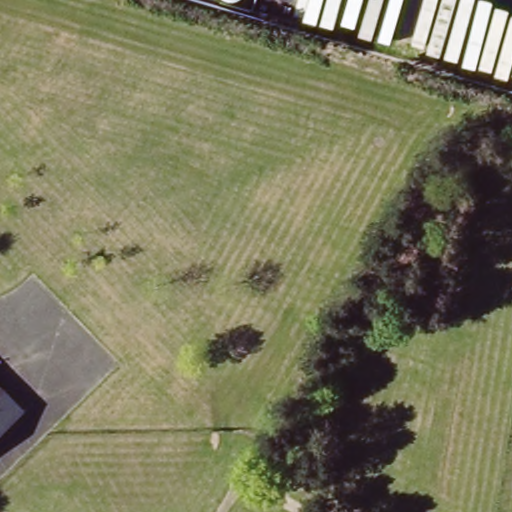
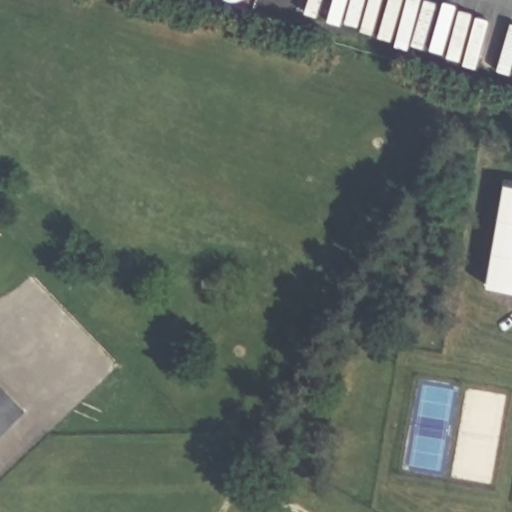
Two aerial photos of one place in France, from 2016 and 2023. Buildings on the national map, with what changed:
new [(505,179),(512,180),(512,290),(489,287),(505,179)]
unchanged [(30,400),(21,409),(0,430),(0,371),(11,382),(30,400)]

